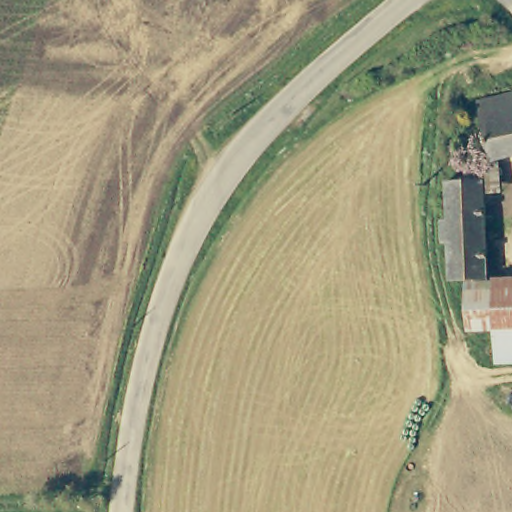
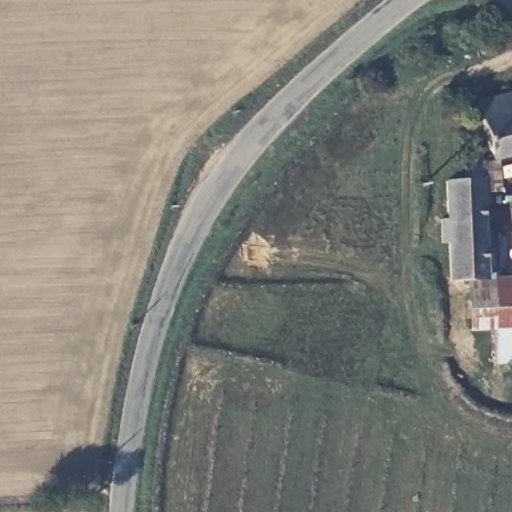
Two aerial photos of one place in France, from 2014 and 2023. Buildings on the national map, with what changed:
unchanged [(512,90),(512,154),(495,159),(479,99),(512,90)]
unchanged [(468,278),(448,278),(448,240),(440,240),(440,217),(447,217),(447,178),(468,179),(468,163),(484,163),(500,163),(500,189),(485,189),(488,277),(468,278)]
unchanged [(512,277),(512,326),(496,327),(470,328),(468,278),(488,277),(512,277)]
unchanged [(496,327),(512,326),(512,359),(496,359),(496,327)]

